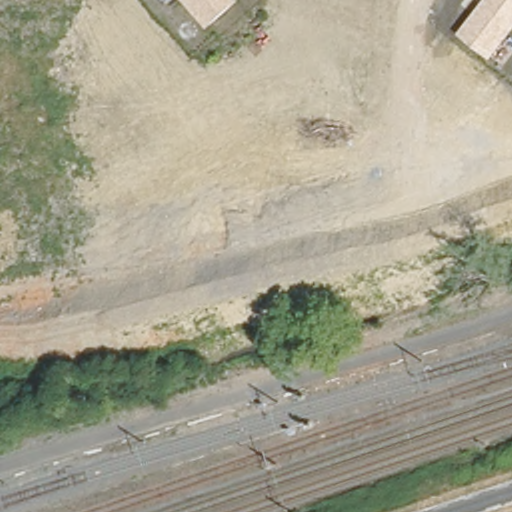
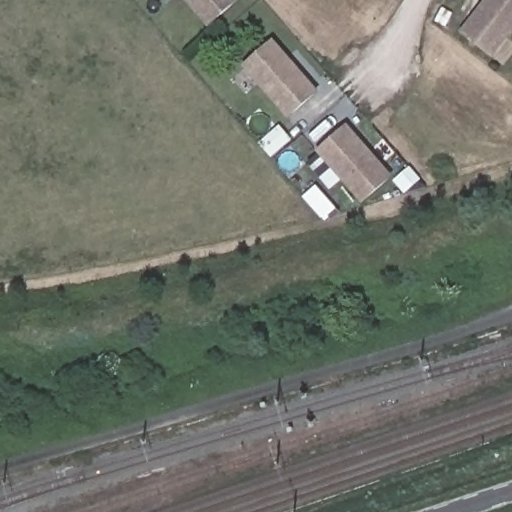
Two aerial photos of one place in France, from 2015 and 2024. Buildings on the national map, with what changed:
unchanged [(185,0),(238,0),(239,1),(209,28),(185,0)]
unchanged [(461,32),(485,0),(512,0),(512,34),(492,58),(461,32)]
new [(242,67),(272,39),(318,92),(287,119),(242,67)]
new [(347,124),(392,178),(362,205),(316,152),(347,124)]

